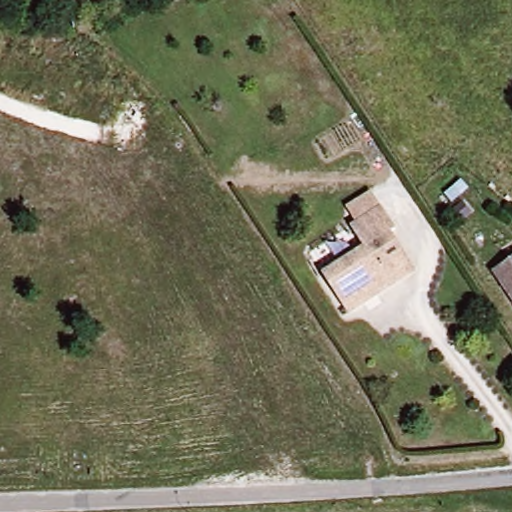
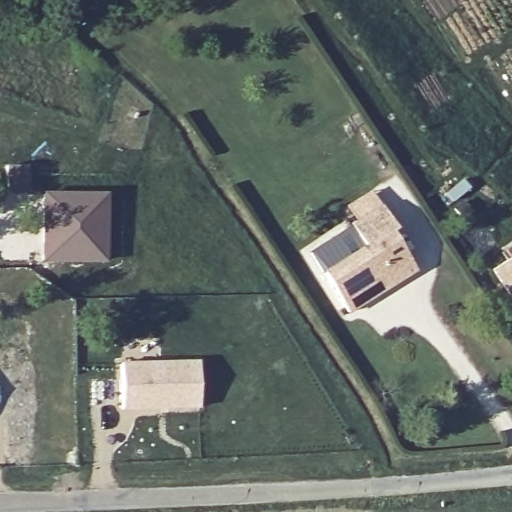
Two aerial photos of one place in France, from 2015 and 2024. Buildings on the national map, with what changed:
new [(41,191),(107,192),(108,263),(41,264),(41,191)]
unchanged [(365,247),(351,226),(380,207),(396,230),(390,234),(413,271),(347,313),(322,273),(365,247)]
unchanged [(512,254),(512,305),(487,271),(512,254)]
new [(199,361),(200,408),(122,410),(122,363),(199,361)]

